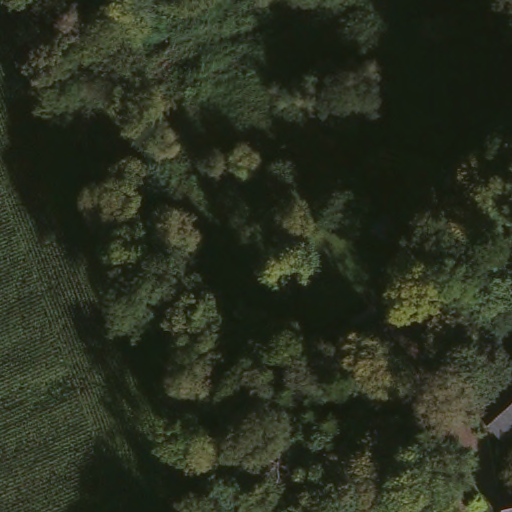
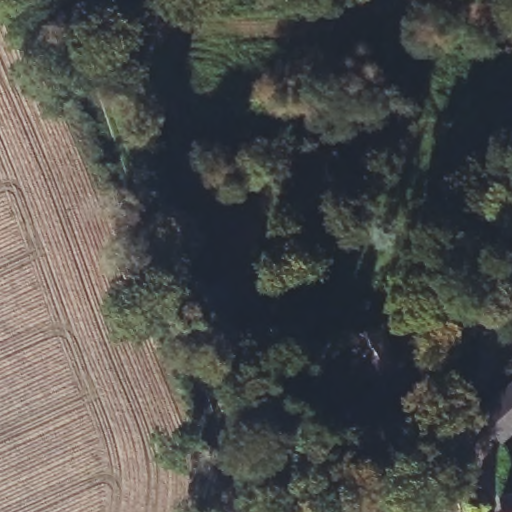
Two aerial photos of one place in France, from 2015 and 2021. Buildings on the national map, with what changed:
unchanged [(382,323),(397,357),(371,370),(354,335),(382,323)]
unchanged [(512,388),(512,437),(497,449),(472,420),(512,388)]
unchanged [(504,512),(501,494),(512,492),(512,512),(504,512)]

